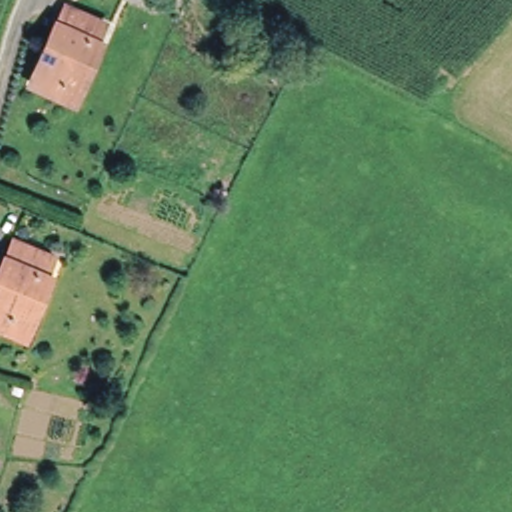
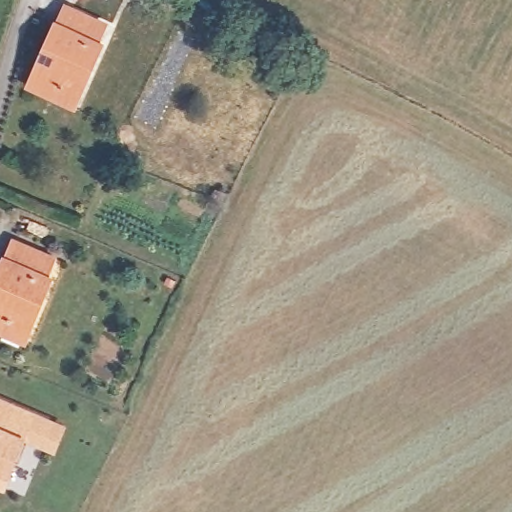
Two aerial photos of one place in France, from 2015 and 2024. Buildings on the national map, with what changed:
unchanged [(24,88),(58,13),(101,29),(72,92),(67,105),(48,97),(24,88)]
unchanged [(0,269),(13,240),(54,258),(23,326),(18,338),(0,331),(0,269)]
new [(56,453),(25,440),(6,491),(0,489),(0,397),(67,423),(56,453)]

